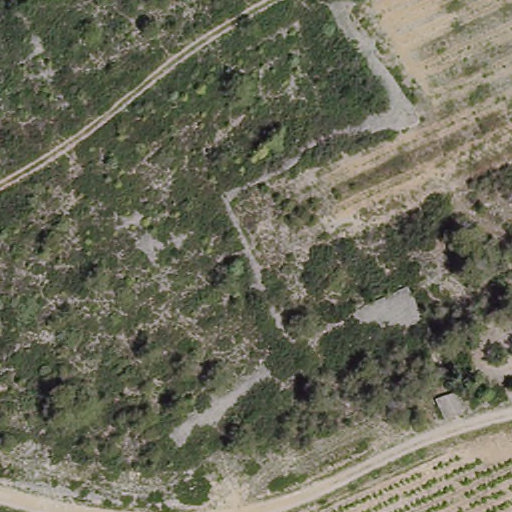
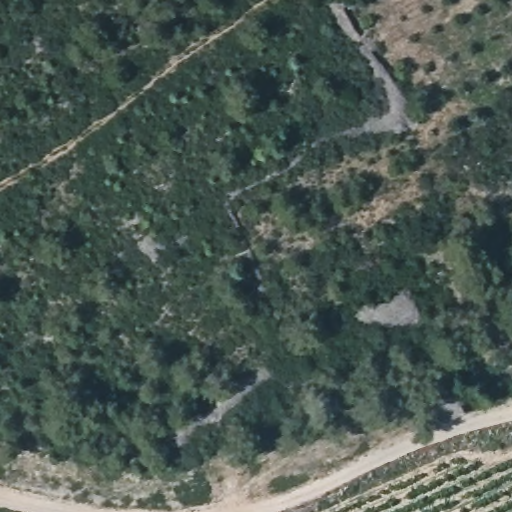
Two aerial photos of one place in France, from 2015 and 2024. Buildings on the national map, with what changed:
unchanged [(459,404),(437,415),(427,394),(449,384),(459,404)]

